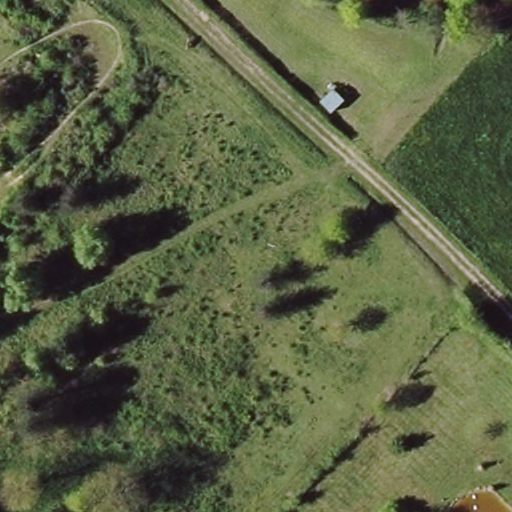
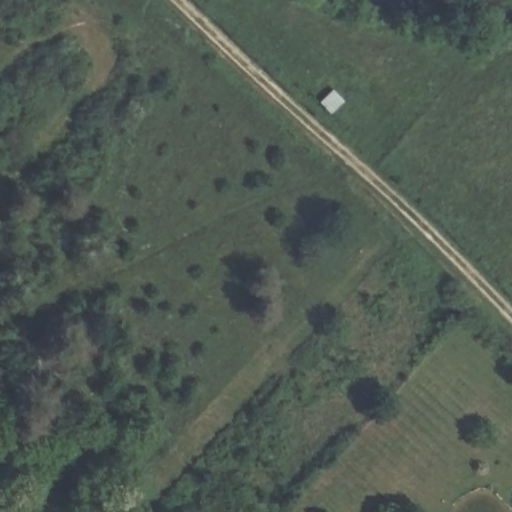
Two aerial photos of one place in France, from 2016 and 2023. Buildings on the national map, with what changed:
unchanged [(356,89),(332,111),(322,100),(345,78),(356,89)]

